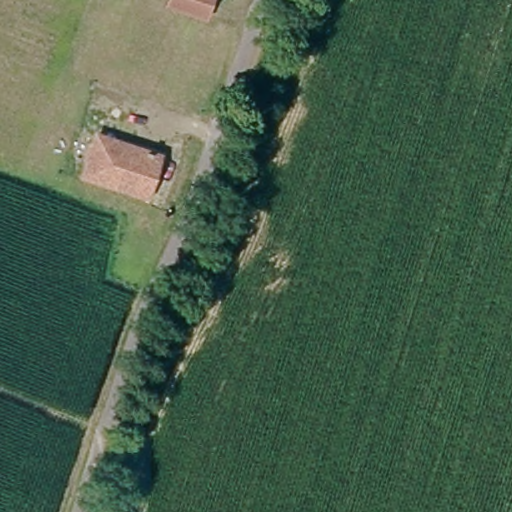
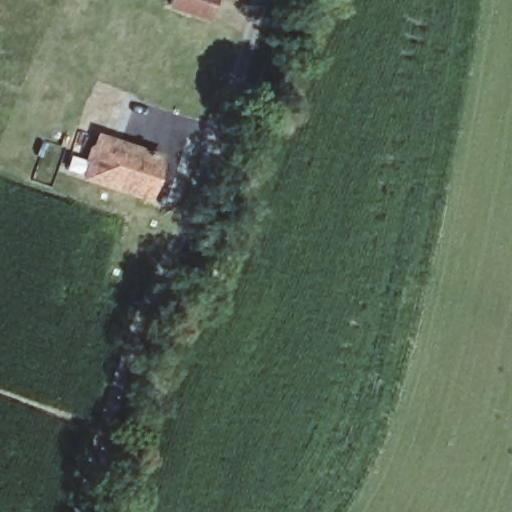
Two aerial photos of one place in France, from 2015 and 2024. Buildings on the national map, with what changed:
unchanged [(169,0),(208,0),(204,18),(189,14),(167,8),(169,0)]
unchanged [(91,141),(149,158),(139,193),(79,175),(91,141)]

